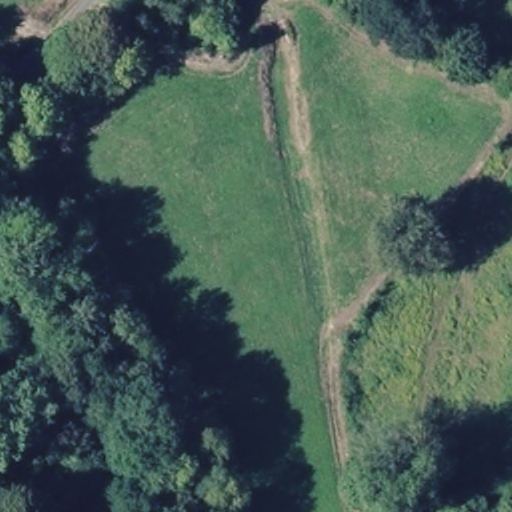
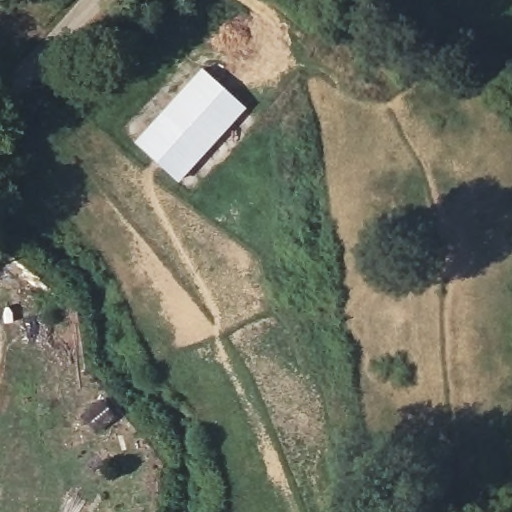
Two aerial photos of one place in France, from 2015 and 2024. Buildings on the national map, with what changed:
new [(200,66),(245,107),(177,181),(133,140),(200,66)]
demolished [(476,500),(512,497),(512,512),(477,512),(476,500)]

